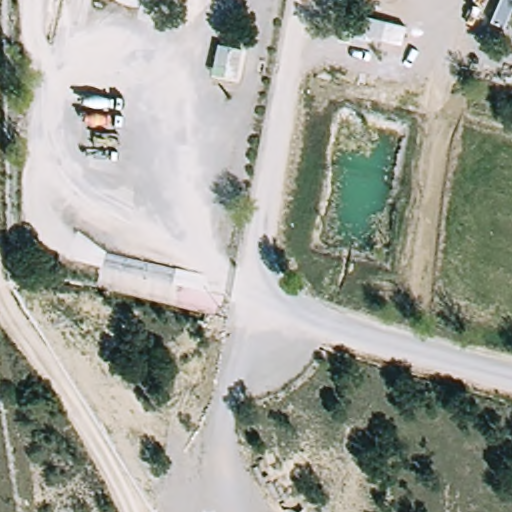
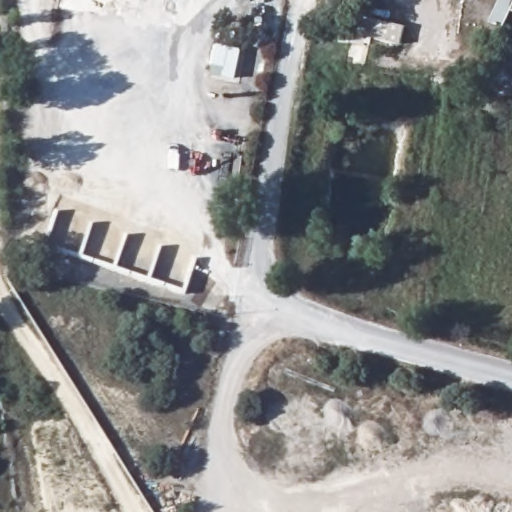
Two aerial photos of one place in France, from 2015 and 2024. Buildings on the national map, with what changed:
unchanged [(490,21),(498,0),(512,0),(512,10),(512,9),(505,28),(490,21)]
unchanged [(361,33),(365,16),(406,26),(402,43),(361,33)]
unchanged [(211,75),(217,44),(242,49),(236,79),(211,75)]

